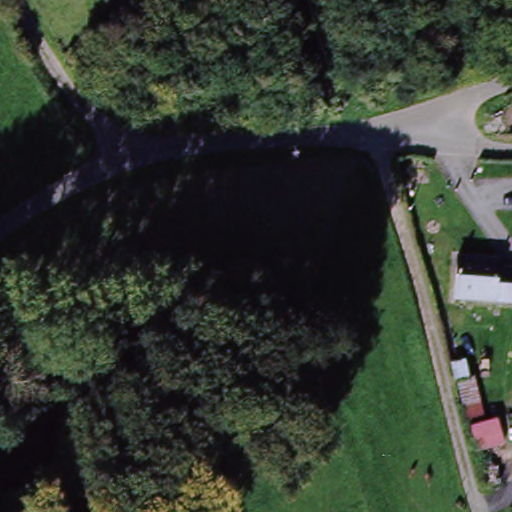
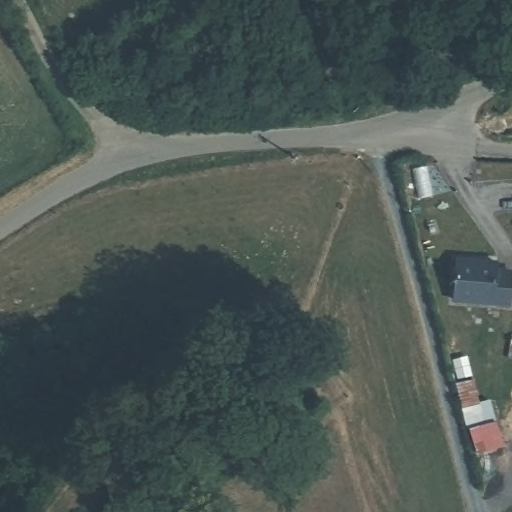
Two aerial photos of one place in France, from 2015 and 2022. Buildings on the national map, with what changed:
unchanged [(450,268),(480,263),(493,260),(502,301),(488,303),(458,309),(450,268)]

